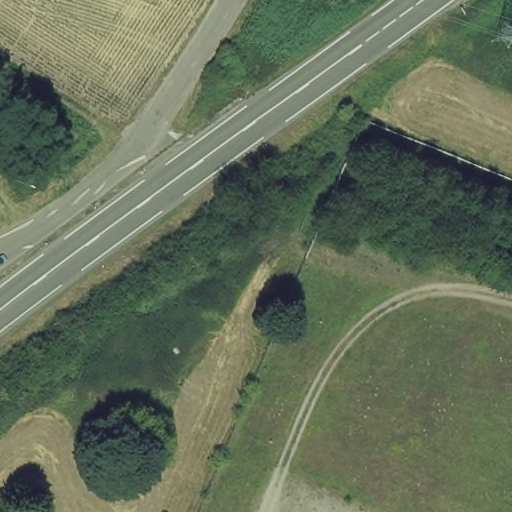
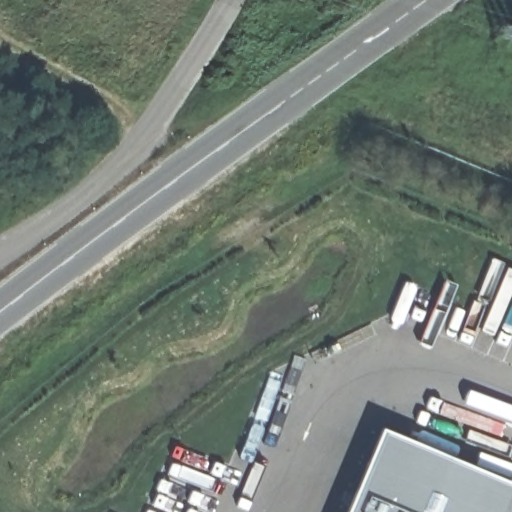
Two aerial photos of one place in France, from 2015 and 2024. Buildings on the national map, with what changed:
new [(512,486),(512,510),(511,512),(347,512),(381,430),(512,486)]

